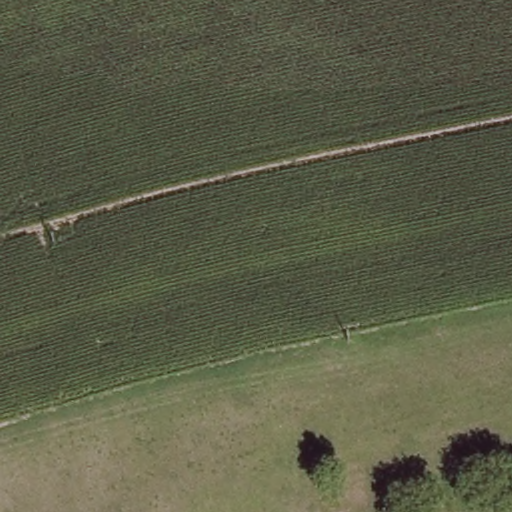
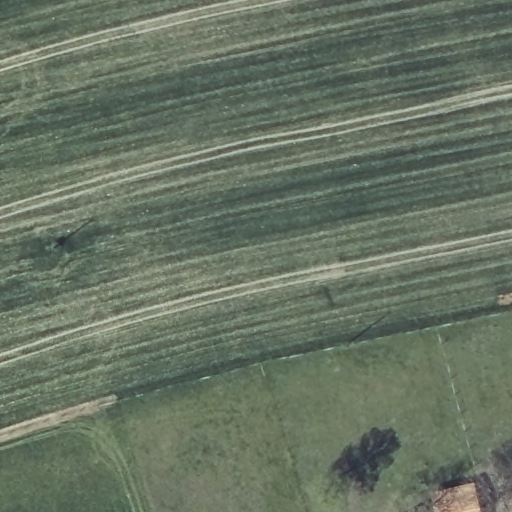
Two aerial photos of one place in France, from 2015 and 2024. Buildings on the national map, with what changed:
new [(431,491),(473,481),(481,512),(437,512),(431,491)]

